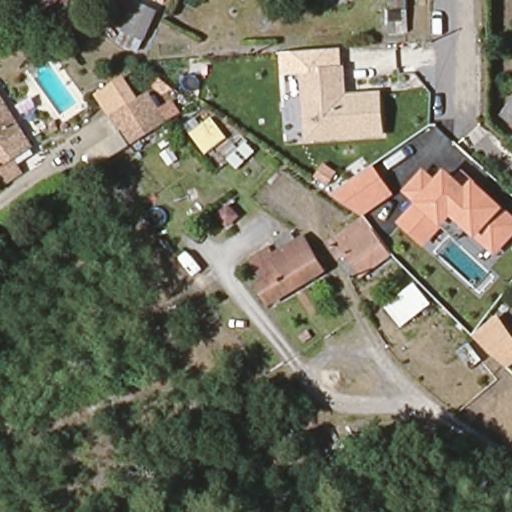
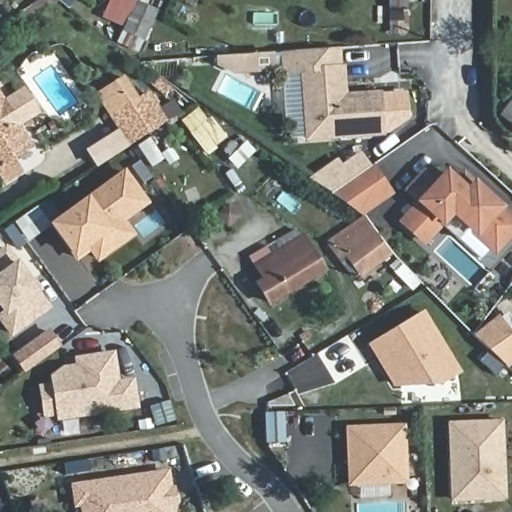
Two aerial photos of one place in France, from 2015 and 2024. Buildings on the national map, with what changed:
unchanged [(60,0),(37,15),(32,6),(42,0),(60,0)]
unchanged [(158,9),(140,50),(139,50),(118,40),(137,0),(139,0),(157,8),(158,9)]
unchanged [(390,32),(390,30),(381,30),(382,17),(390,18),(391,0),(406,0),(404,32),(390,32)]
unchanged [(385,136),(303,142),(298,67),(343,65),(346,92),(381,90),(385,136)]
unchanged [(109,120),(92,93),(123,75),(140,101),(109,120)]
unchanged [(6,185),(0,175),(0,98),(29,146),(12,156),(22,175),(6,185)]
unchanged [(145,99),(151,110),(166,100),(174,115),(160,124),(125,145),(109,120),(140,101),(145,99)]
unchanged [(512,127),(504,120),(512,111),(512,127)]
new [(150,177),(142,184),(130,167),(138,161),(150,177)]
unchanged [(467,230),(456,240),(443,227),(425,247),(398,221),(416,202),(402,190),(425,167),(433,175),(444,164),(457,175),(464,168),(512,212),(512,240),(496,257),(467,230)]
unchanged [(362,215),(330,194),(376,166),(395,195),(362,215)]
new [(93,264),(83,250),(69,260),(48,231),(124,175),(146,205),(121,222),(131,236),(118,245),(93,264)]
new [(46,223),(25,239),(13,222),(34,207),(46,223)]
unchanged [(390,252),(360,275),(344,254),(339,257),(329,244),(363,218),(390,252)]
unchanged [(248,258),(267,246),(272,255),(302,236),(322,271),(269,304),(257,283),(261,280),(248,258)]
new [(47,310),(10,337),(0,322),(0,317),(4,315),(0,309),(0,253),(4,250),(47,310)]
new [(71,262),(69,260),(83,250),(84,252),(71,262)]
unchanged [(420,287),(431,302),(413,316),(402,302),(420,287)]
unchanged [(401,305),(407,313),(397,320),(392,312),(401,305)]
new [(458,374),(435,387),(395,387),(371,346),(423,315),(458,374)]
unchanged [(512,340),(512,360),(503,366),(472,336),(497,318),(512,340)]
new [(25,374),(15,360),(48,335),(59,350),(25,374)]
new [(135,408),(59,420),(52,379),(63,371),(78,369),(77,361),(112,356),(117,385),(132,383),(135,408)]
new [(58,415),(45,416),(41,389),(54,387),(58,415)]
new [(503,500),(453,501),(450,427),(500,425),(503,500)]
new [(405,483),(350,485),(348,430),(403,428),(405,483)]
new [(95,505),(76,507),(73,489),(166,475),(170,498),(171,506),(172,512),(96,512),(95,505)]
new [(96,512),(84,512),(83,506),(95,505),(96,512)]

